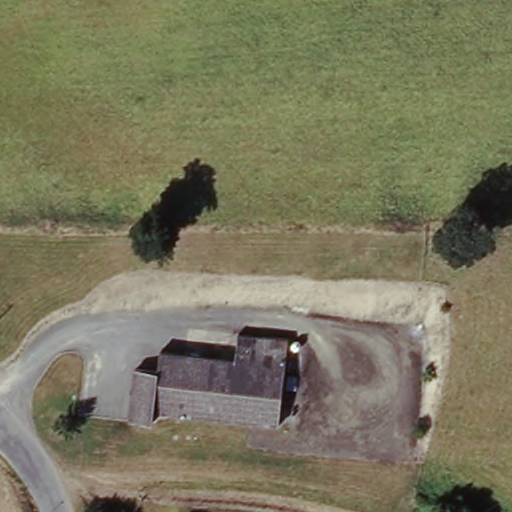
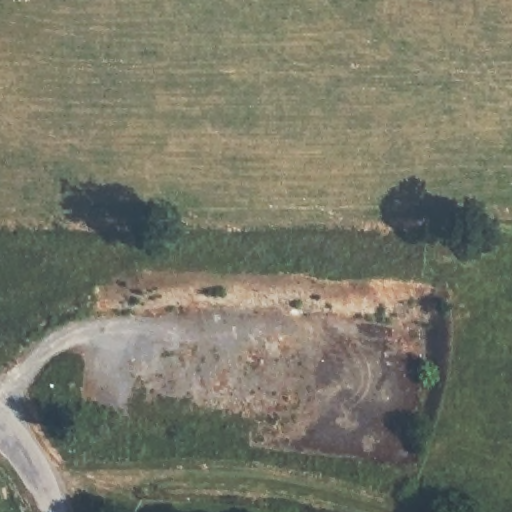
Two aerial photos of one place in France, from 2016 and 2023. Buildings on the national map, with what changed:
demolished [(157,368),(160,346),(235,356),(238,332),(286,338),(277,422),(152,407),(150,420),(128,416),(137,365),(157,368)]

